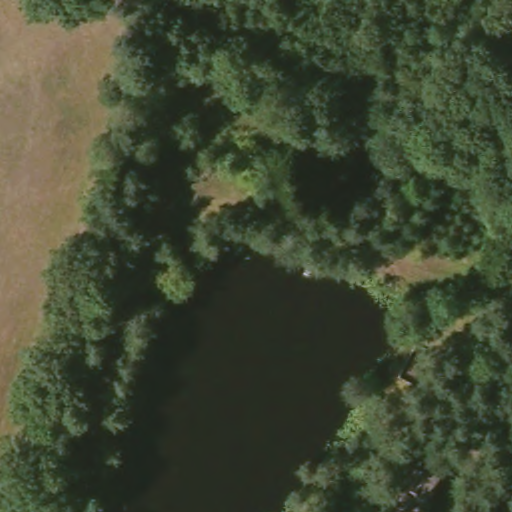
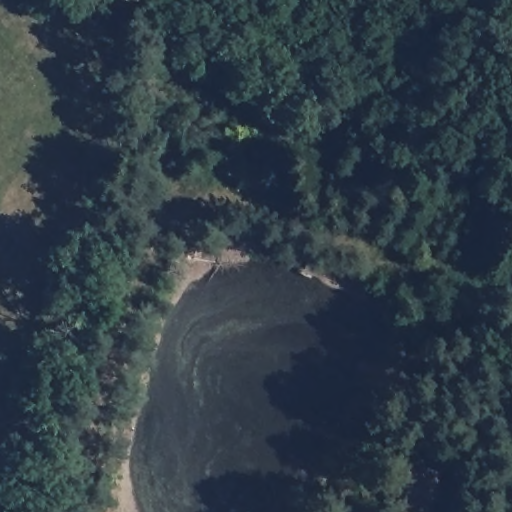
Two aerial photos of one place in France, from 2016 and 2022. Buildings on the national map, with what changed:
unchanged [(442,471),(430,512),(402,512),(418,463),(442,471)]

